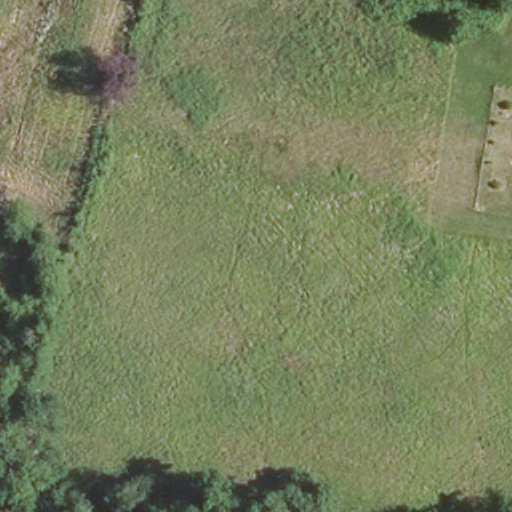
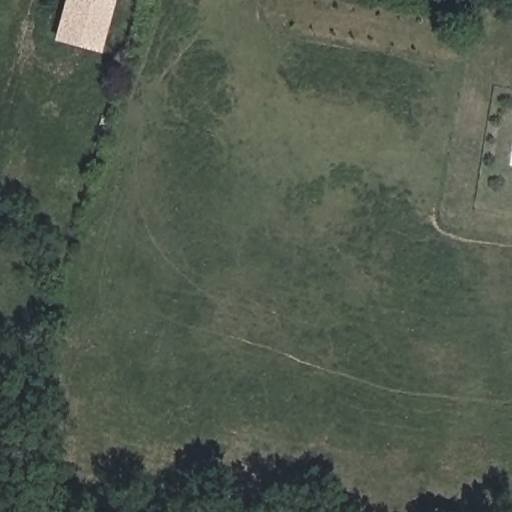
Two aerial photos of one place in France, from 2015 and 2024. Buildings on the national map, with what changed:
new [(65,0),(116,0),(102,52),(54,39),(65,0)]

